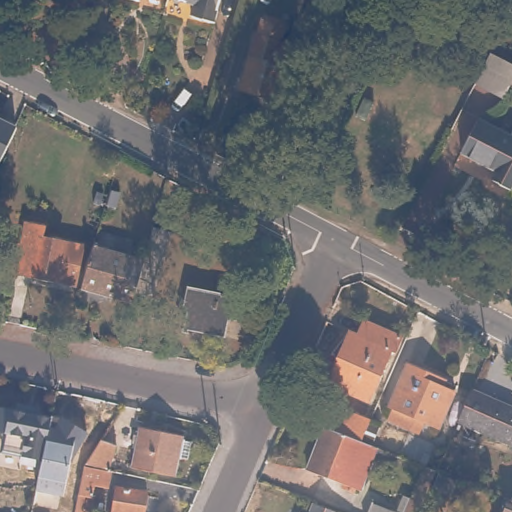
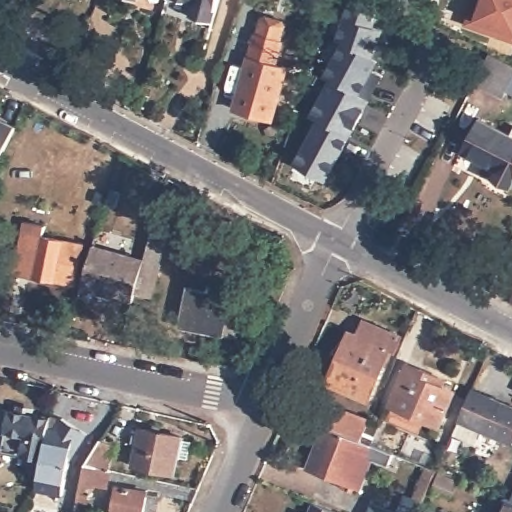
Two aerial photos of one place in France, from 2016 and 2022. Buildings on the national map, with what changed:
unchanged [(192,17),(194,6),(175,0),(218,0),(211,23),(192,17)]
new [(481,31),(482,24),(474,21),(480,1),(485,4),(486,0),(512,0),(512,42),(481,31)]
new [(296,159),(299,160),(302,149),(300,147),(306,135),(305,135),(312,115),(311,115),(316,99),(329,76),(339,41),(349,12),(386,30),(374,58),(380,60),(375,69),(385,74),(371,99),(372,100),(326,181),(293,165),(296,159)]
unchanged [(283,40),(277,62),(287,66),(278,97),(241,86),(257,31),(283,40)]
unchanged [(512,61),(512,63),(497,93),(471,82),(487,49),(512,61)]
new [(278,97),(281,98),(272,121),(230,110),(238,85),(241,86),(278,97)]
unchanged [(3,161),(0,160),(0,116),(21,127),(3,161)]
unchanged [(512,135),(512,188),(498,183),(503,172),(464,154),(480,120),(512,135)]
unchanged [(50,227),(48,240),(84,247),(76,288),(14,277),(26,223),(50,227)]
unchanged [(144,266),(154,230),(171,235),(153,304),(135,300),(144,266)]
unchanged [(82,289),(93,250),(144,266),(135,300),(132,308),(107,302),(81,295),(82,289)]
unchanged [(237,335),(226,333),(182,325),(189,285),(241,295),(238,315),(241,315),(237,335)]
unchanged [(400,333),(394,347),(390,345),(369,397),(329,380),(351,328),(359,331),(365,317),(400,333)]
unchanged [(446,377),(442,385),(455,390),(440,425),(388,403),(406,360),(446,377)]
unchanged [(484,429),(464,420),(478,389),(498,398),(512,405),(512,443),(484,429)]
unchanged [(328,422),(320,420),(329,398),(377,418),(368,438),(328,422)]
unchanged [(17,402),(33,405),(31,413),(50,417),(41,460),(2,452),(6,431),(0,430),(0,409),(16,411),(17,402)]
unchanged [(80,423),(64,500),(33,494),(41,460),(50,417),(80,423)]
unchanged [(319,446),(328,422),(368,438),(379,443),(363,485),(358,484),(356,489),(350,487),(352,481),(327,471),(311,465),(319,446)]
unchanged [(193,442),(190,460),(178,457),(173,477),(132,467),(140,431),(193,442)]
unchanged [(111,485),(95,482),(88,512),(75,512),(85,463),(101,437),(116,445),(115,461),(114,470),(111,485)]
unchanged [(416,495),(419,497),(425,484),(432,464),(441,467),(433,487),(424,507),(422,512),(408,512),(416,495)]
unchanged [(146,490),(143,512),(111,512),(116,485),(146,490)]
unchanged [(512,495),(512,498),(511,497),(512,495)]
unchanged [(512,498),(512,512),(505,512),(511,497),(512,498)]
unchanged [(376,500),(404,512),(371,512),(376,500)]
unchanged [(341,512),(310,512),(314,501),(341,512)]

